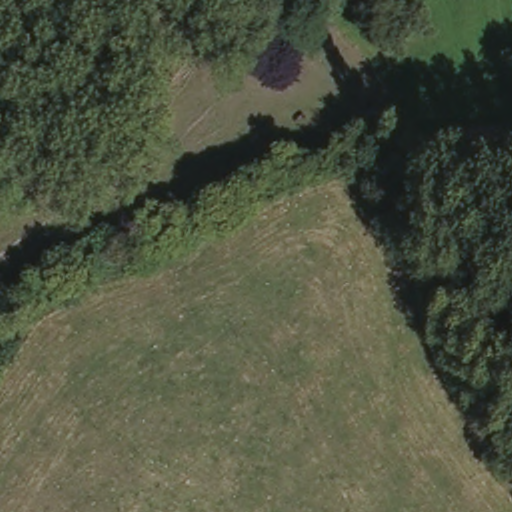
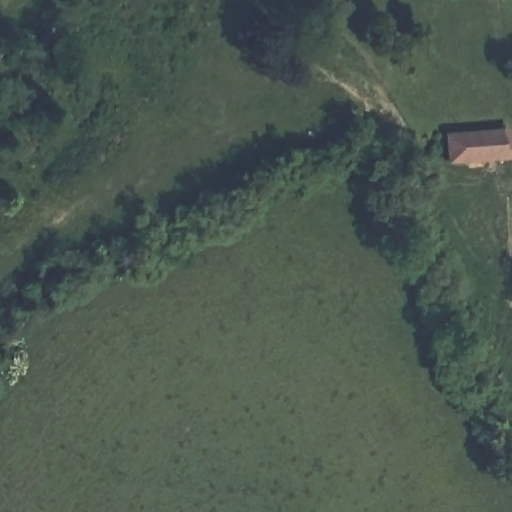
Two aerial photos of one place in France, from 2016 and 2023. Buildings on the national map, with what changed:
demolished [(473,145),(468,117),(512,113),(512,142),(473,145)]
new [(445,160),(444,130),(511,124),(512,141),(512,158),(445,160)]

